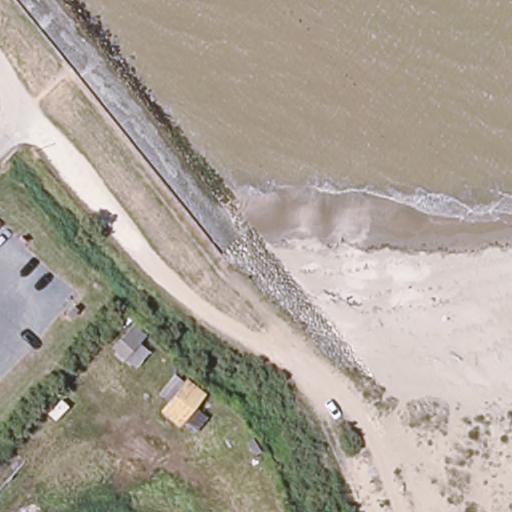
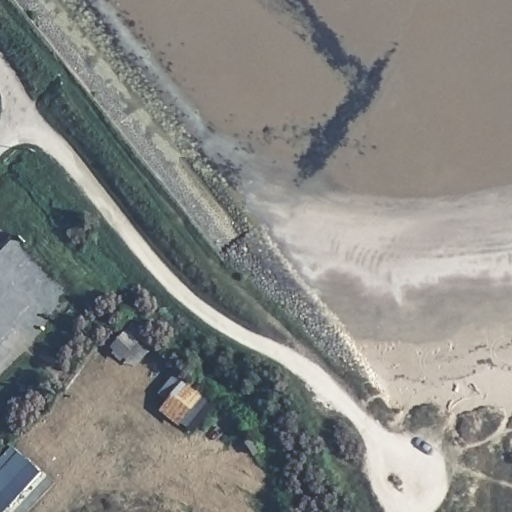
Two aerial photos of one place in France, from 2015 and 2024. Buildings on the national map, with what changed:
unchanged [(136,319),(154,336),(147,340),(157,349),(137,367),(114,342),(136,319)]
unchanged [(165,403),(187,377),(207,392),(182,425),(160,410),(165,403)]
new [(41,472),(6,512),(0,512),(0,462),(12,447),(41,472)]

